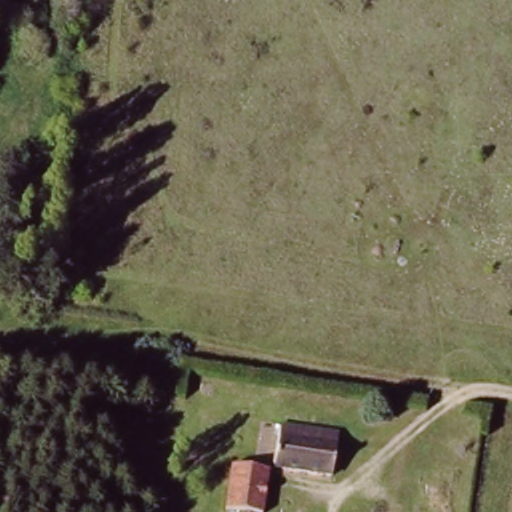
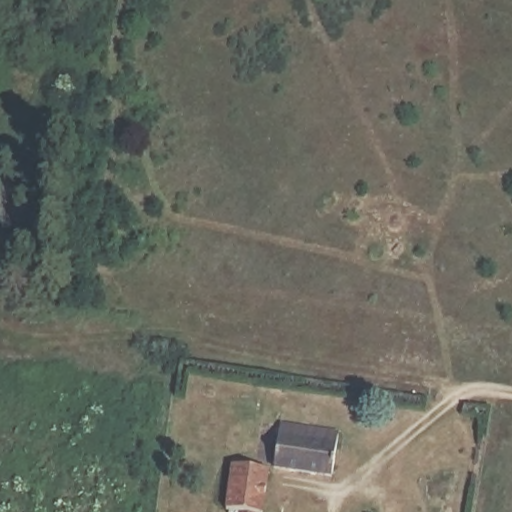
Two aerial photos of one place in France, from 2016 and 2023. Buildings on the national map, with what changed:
unchanged [(335,430),(331,473),(277,468),(281,424),(335,430)]
unchanged [(264,512),(239,512),(239,509),(228,509),(234,466),(269,469),(264,512)]

